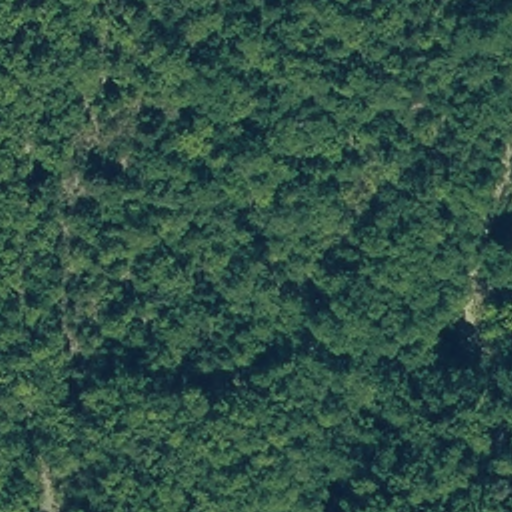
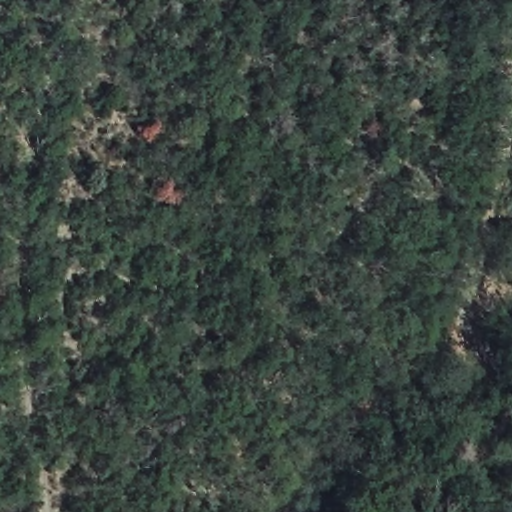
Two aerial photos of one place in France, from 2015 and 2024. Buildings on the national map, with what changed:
[]

